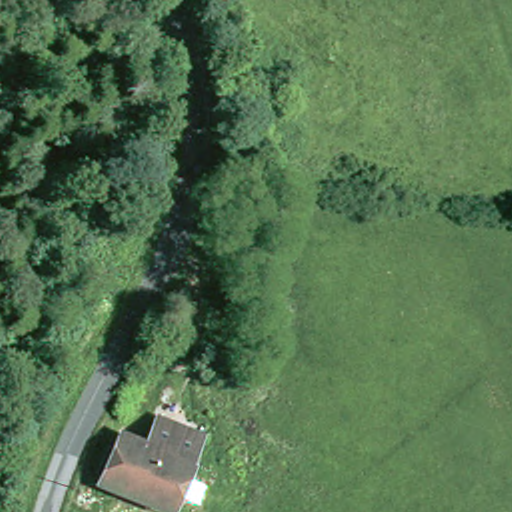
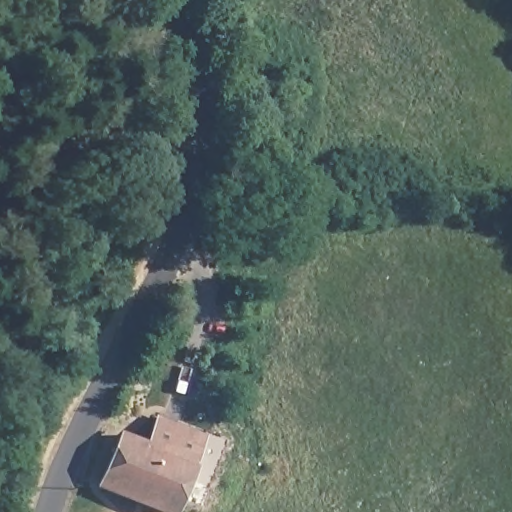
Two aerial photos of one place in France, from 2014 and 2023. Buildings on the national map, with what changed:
unchanged [(194,497),(184,493),(176,512),(159,512),(101,488),(135,407),(159,417),(205,436),(207,436),(188,482),(197,486),(194,497)]

